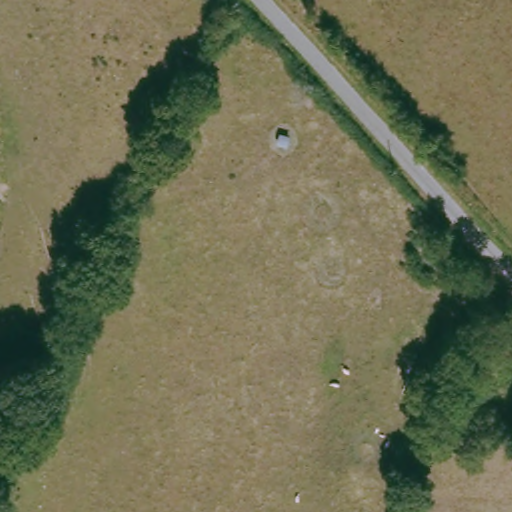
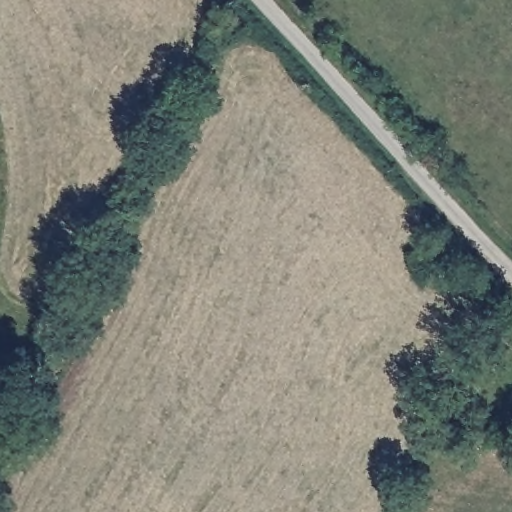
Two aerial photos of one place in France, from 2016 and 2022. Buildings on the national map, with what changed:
[]

